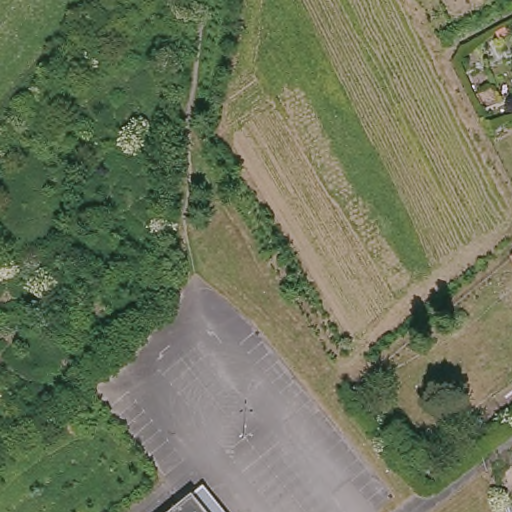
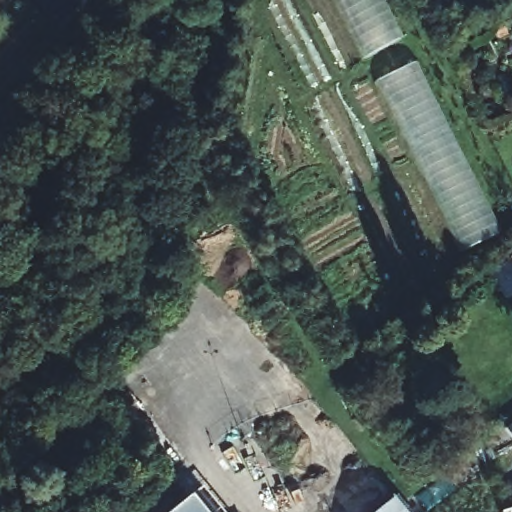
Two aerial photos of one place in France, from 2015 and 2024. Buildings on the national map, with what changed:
new [(361,57),(333,0),(386,0),(405,36),(361,57)]
new [(417,61),(500,234),(460,252),(375,81),(417,61)]
unchanged [(512,258),(512,261),(510,259),(512,258)]
unchanged [(195,491),(211,512),(169,512),(195,491)]
new [(406,512),(373,512),(392,496),(406,512)]

